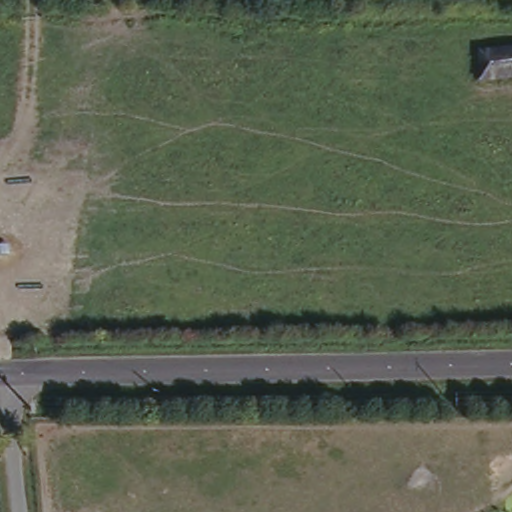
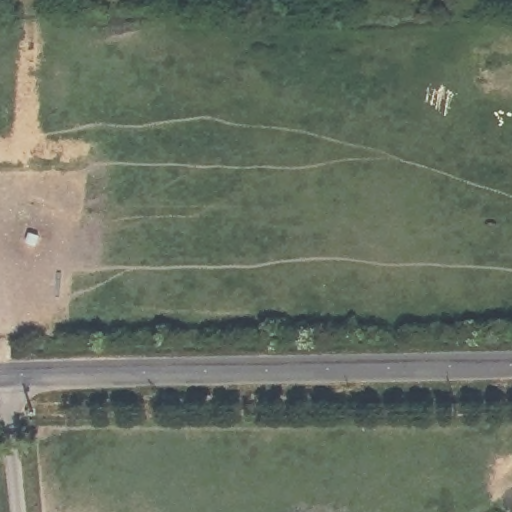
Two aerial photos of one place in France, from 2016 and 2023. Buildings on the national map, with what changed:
unchanged [(484,48),(512,49),(512,75),(483,75),(484,48)]

